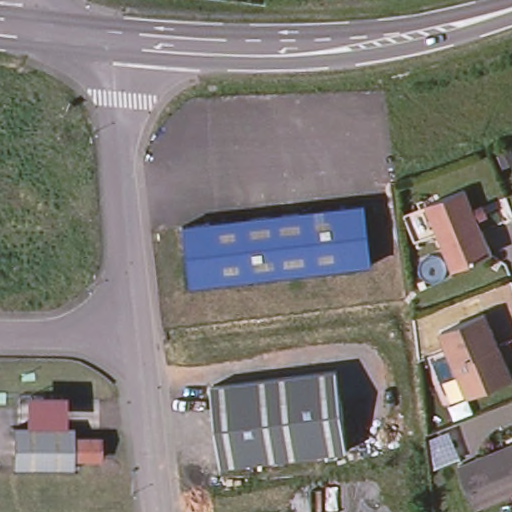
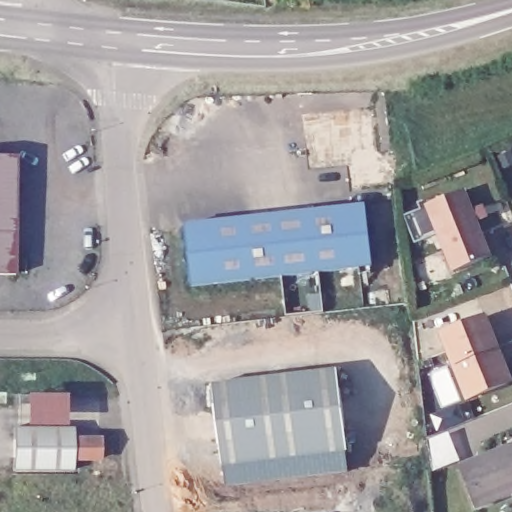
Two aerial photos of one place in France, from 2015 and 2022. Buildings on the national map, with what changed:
new [(18,154),(17,274),(0,274),(0,154),(18,154)]
unchanged [(490,255),(452,270),(426,204),(464,189),(490,255)]
unchanged [(367,205),(373,266),(192,284),(186,223),(367,205)]
unchanged [(507,381),(503,386),(463,401),(437,338),(481,321),(494,353),(502,369),(507,381)]
unchanged [(211,387),(339,371),(347,453),(223,467),(211,387)]
unchanged [(67,391),(68,420),(83,421),(83,433),(106,433),(104,462),(83,464),(83,476),(12,474),(13,418),(28,418),(28,393),(67,391)]
unchanged [(503,449),(511,448),(512,446),(512,490),(467,502),(456,458),(502,446),(503,449)]

